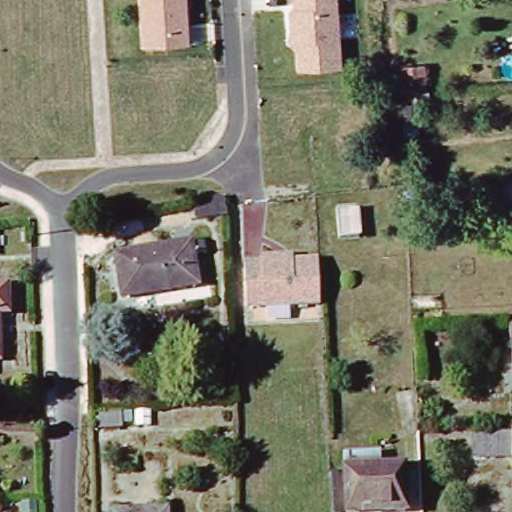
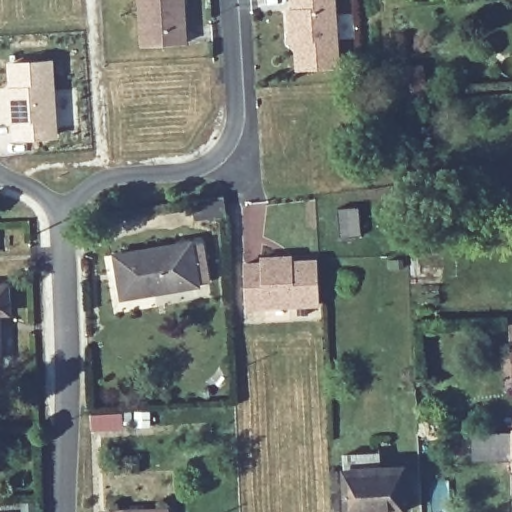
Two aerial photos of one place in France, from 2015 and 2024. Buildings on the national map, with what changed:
unchanged [(187,0),(189,44),(146,46),(144,0),(187,0)]
unchanged [(286,41),(283,7),(292,7),(292,0),(337,0),(342,65),(296,70),(295,49),(286,41)]
unchanged [(395,63),(425,61),(428,95),(399,98),(395,63)]
new [(7,121),(2,121),(1,105),(0,95),(0,90),(5,89),(5,100),(3,65),(43,62),(49,135),(8,138),(7,121)]
unchanged [(190,202),(220,200),(220,202),(221,218),(192,219),(190,202)]
unchanged [(350,203),(350,232),(335,233),(334,203),(350,203)]
unchanged [(121,299),(114,255),(192,243),(199,287),(121,299)]
unchanged [(195,244),(200,243),(202,253),(196,254),(195,244)]
unchanged [(248,260),(265,259),(265,254),(282,253),(296,253),(296,258),(320,257),(323,300),(250,304),(248,260)]
unchanged [(10,310),(2,309),(2,358),(0,358),(0,283),(10,283),(10,310)]
unchanged [(511,347),(512,347),(512,361),(511,347)]
unchanged [(115,412),(116,427),(85,427),(85,413),(115,412)]
unchanged [(471,434),(510,434),(510,428),(512,428),(512,459),(510,459),(470,457),(471,434)]
unchanged [(401,471),(403,512),(374,512),(372,472),(401,471)]
unchanged [(345,474),(372,472),(374,512),(347,512),(345,474)]
unchanged [(166,510),(166,512),(123,512),(166,510)]

